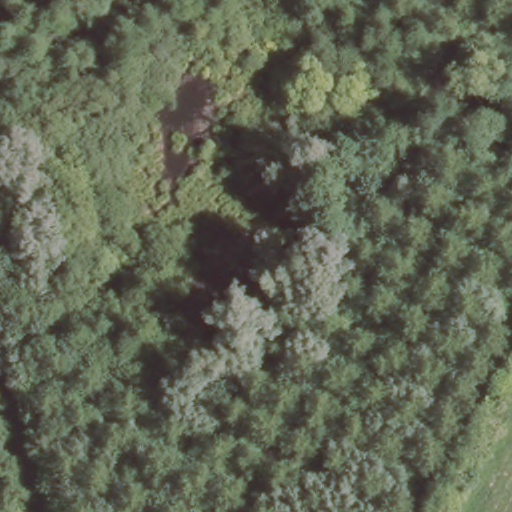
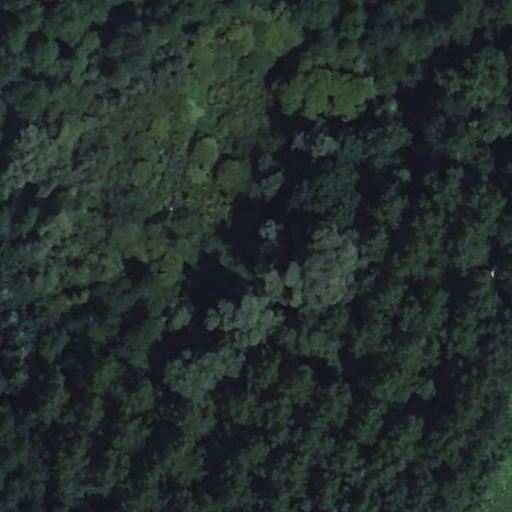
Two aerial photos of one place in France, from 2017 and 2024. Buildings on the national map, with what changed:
unchanged [(104,62),(128,47),(138,63),(115,79),(104,62)]

